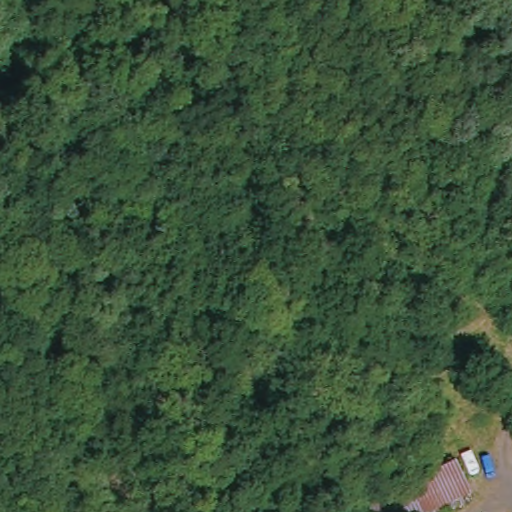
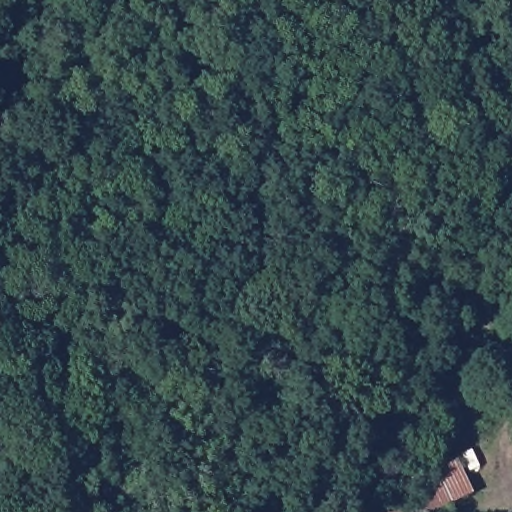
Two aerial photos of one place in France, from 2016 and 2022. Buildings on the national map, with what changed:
unchanged [(431,512),(374,512),(368,498),(455,459),(471,494),(431,512)]

